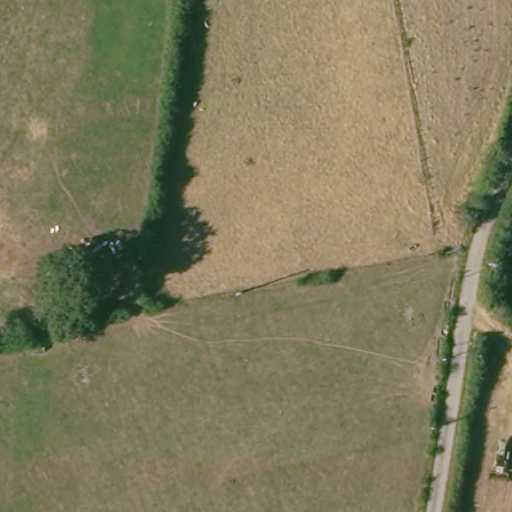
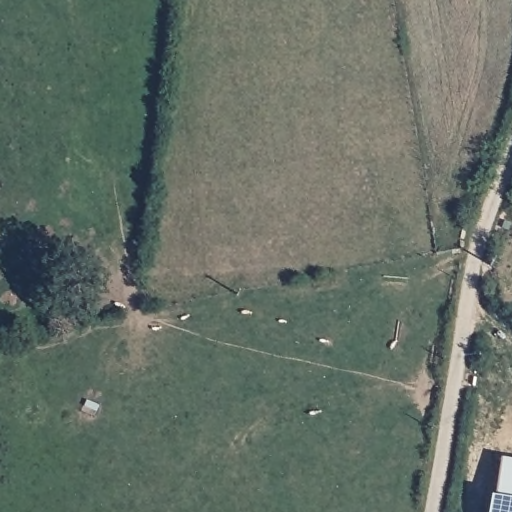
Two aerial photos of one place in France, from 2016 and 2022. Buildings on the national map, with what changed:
new [(512,457),(512,512),(491,512),(508,456),(512,457)]

